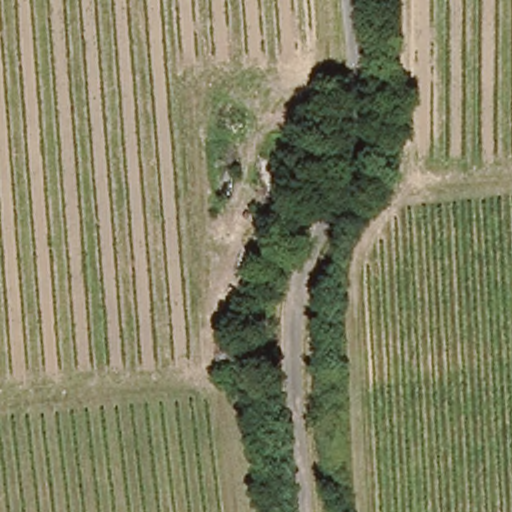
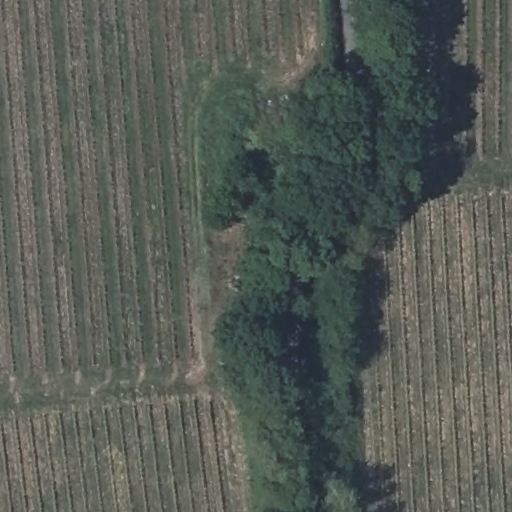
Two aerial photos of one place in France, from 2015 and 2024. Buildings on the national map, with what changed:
[]

